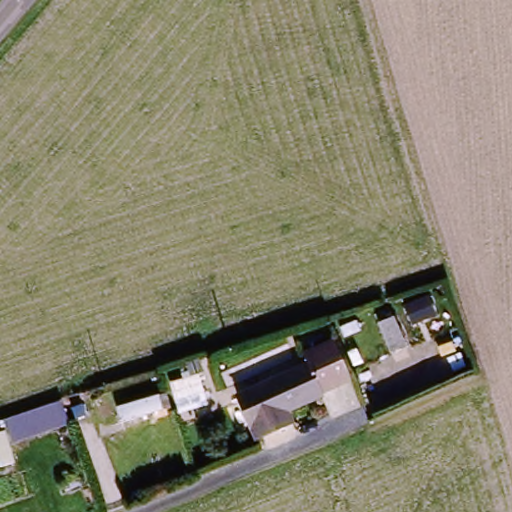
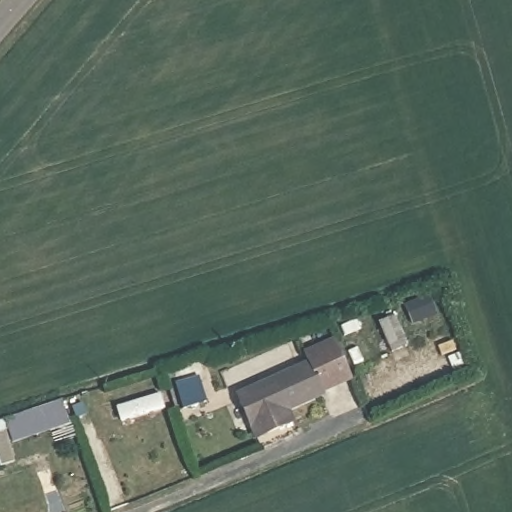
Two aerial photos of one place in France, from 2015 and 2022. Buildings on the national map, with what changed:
unchanged [(318,397),(320,399),(280,417),(285,427),(248,443),(231,405),(308,369),(304,360),(335,346),(352,381),(318,397)]

